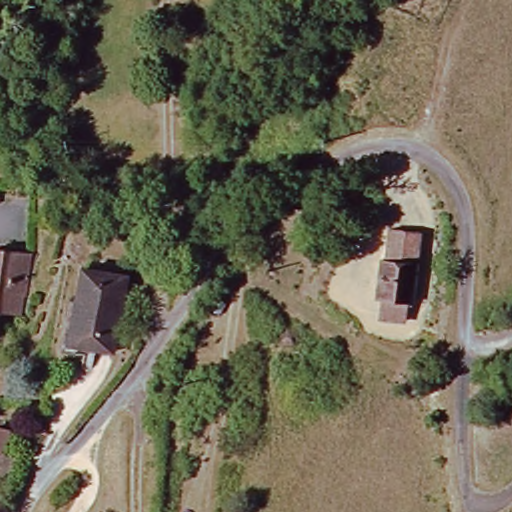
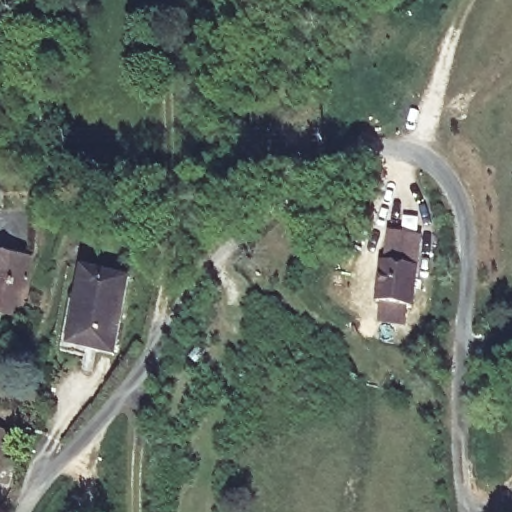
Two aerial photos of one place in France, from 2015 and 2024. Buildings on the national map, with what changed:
unchanged [(376,317),(380,298),(374,296),(383,257),(388,258),(394,228),(423,234),(409,303),(402,301),(399,321),(376,317)]
unchanged [(19,296),(5,295),(2,316),(0,316),(0,252),(23,255),(19,296)]
unchanged [(110,353),(65,347),(75,274),(119,280),(110,353)]
unchanged [(7,433),(0,457),(0,431),(7,433)]
unchanged [(9,482),(0,480),(0,457),(15,462),(9,482)]

